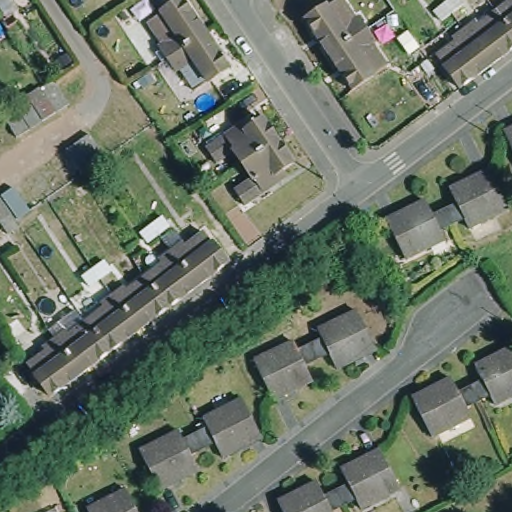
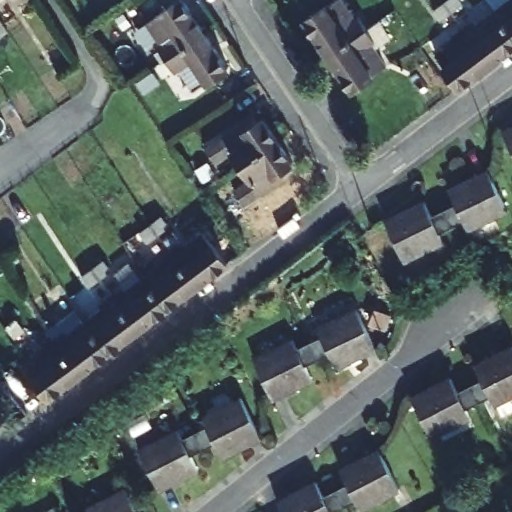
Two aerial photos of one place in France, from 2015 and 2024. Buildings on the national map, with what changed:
unchanged [(162,36),(168,33),(154,11),(171,0),(191,0),(207,24),(170,48),(162,36)]
unchanged [(287,0),(310,0),(294,11),(287,0)]
unchanged [(326,0),(337,0),(347,15),(354,11),(362,23),(322,50),(300,16),(326,0)]
unchanged [(500,8),(509,0),(512,0),(512,25),(500,8)]
unchanged [(480,16),(484,20),(500,8),(512,25),(512,47),(492,63),(466,26),(480,16)]
unchanged [(362,23),(370,36),(364,41),(378,63),(345,85),(322,50),(362,23)]
unchanged [(199,81),(183,58),(177,61),(170,48),(207,24),(230,61),(199,81)]
unchanged [(492,63),(462,86),(438,53),(457,39),(455,35),(466,26),(492,63)]
unchanged [(57,114),(42,91),(47,88),(54,84),(69,107),(62,111),(57,114)]
unchanged [(39,90),(55,115),(44,123),(27,98),(39,90)]
unchanged [(18,106),(27,101),(42,124),(34,130),(30,131),(15,109),(18,106)]
unchanged [(222,122),(239,111),(242,116),(260,106),(274,128),(239,151),(230,137),(214,148),(205,134),(222,122)]
unchanged [(14,110),(28,133),(16,141),(0,119),(14,110)]
unchanged [(498,126),(512,120),(512,155),(498,126)]
unchanged [(239,151),(274,128),(289,150),(273,161),(276,166),(260,178),(242,190),(232,175),(248,165),(239,151)]
unchanged [(90,137),(105,159),(94,166),(79,145),(90,137)]
unchanged [(79,177),(64,155),(67,153),(76,146),(92,168),(81,175),(79,177)]
unchanged [(50,165),(65,187),(55,194),(40,172),(50,165)]
unchanged [(457,200),(450,185),(489,166),(508,207),(470,225),(465,214),(452,220),(445,206),(457,200)]
unchanged [(26,182),(39,173),(53,195),(42,203),(26,182)]
unchanged [(440,226),(445,238),(406,256),(387,215),(425,197),(432,212),(445,206),(452,220),(440,226)]
unchanged [(16,222),(4,230),(0,224),(0,200),(16,222)]
unchanged [(187,236),(189,239),(206,227),(230,260),(201,282),(175,245),(187,236)]
unchanged [(172,304),(147,271),(165,257),(163,254),(175,245),(201,282),(172,304)]
unchanged [(130,279),(132,282),(147,271),(172,304),(142,326),(117,289),(130,279)]
unchanged [(113,348),(90,315),(107,302),(105,298),(117,289),(142,326),(113,348)]
unchanged [(320,327),(315,317),(353,299),(372,338),(335,357),(328,342),(315,349),(307,334),(320,327)]
unchanged [(70,324),(73,328),(90,315),(113,348),(85,369),(59,333),(70,324)]
unchanged [(303,355),(310,369),(270,388),(252,349),(290,330),(295,339),(307,334),(315,349),(303,355)]
unchanged [(52,393),(37,374),(28,361),(46,347),(44,344),(59,333),(85,369),(52,393)]
unchanged [(487,386),(482,389),(475,392),(470,380),(480,374),(473,359),(511,340),(512,341),(512,387),(493,397),(487,386)]
unchanged [(413,396),(410,390),(449,370),(457,385),(470,380),(475,392),(464,398),(465,401),(469,409),(429,428),(413,396)]
unchanged [(207,421),(202,411),(239,393),(258,432),(222,450),(215,436),(201,443),(194,427),(207,421)]
unchanged [(190,448),(197,463),(157,482),(139,443),(178,423),(182,433),(194,427),(201,443),(190,448)]
unchanged [(277,498),(276,495),(295,485),(314,475),(322,491),(335,485),(346,480),(339,463),(377,444),(385,461),(397,482),(358,502),(354,492),(341,498),(329,505),(333,512),(285,512),(277,498)]
unchanged [(90,506),(85,496),(124,477),(141,512),(78,512),(90,506)]
unchanged [(60,508),(62,512),(51,512),(60,508)]

